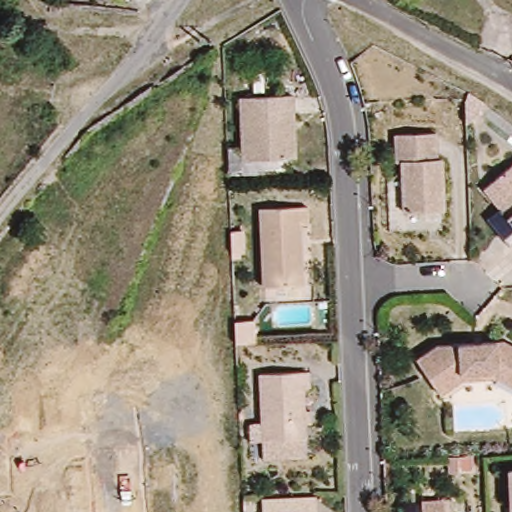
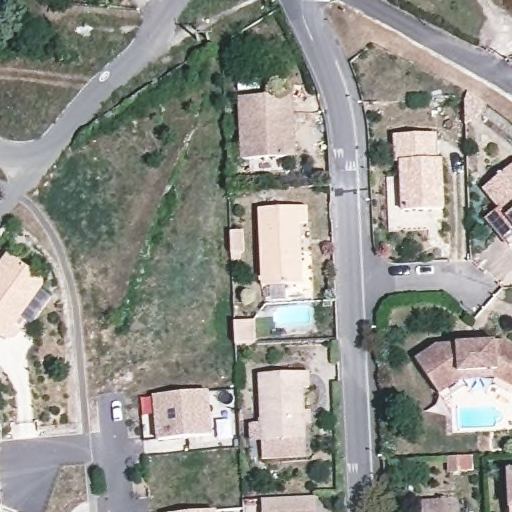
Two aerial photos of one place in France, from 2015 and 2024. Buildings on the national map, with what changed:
unchanged [(289,114),(290,135),(290,158),(237,160),(235,97),(287,95),(289,114)]
unchanged [(434,135),(435,159),(440,159),(442,211),(402,212),(400,177),(400,162),(395,162),(393,135),(434,135)]
unchanged [(491,217),(499,211),(482,190),(512,165),(512,242),(491,217)]
unchanged [(255,210),(303,208),(304,225),(296,225),(299,286),(258,288),(255,210)]
unchanged [(242,231),(242,253),(232,253),(231,231),(242,231)]
new [(15,329),(21,332),(13,344),(7,339),(5,341),(0,338),(0,264),(7,254),(47,284),(15,329)]
unchanged [(235,320),(254,319),(255,343),(237,344),(235,320)]
unchanged [(457,383),(435,398),(431,392),(411,363),(432,348),(497,343),(512,350),(512,391),(490,381),(457,383)]
unchanged [(307,424),(300,425),(302,441),(258,443),(257,424),(255,375),(304,372),(305,389),(299,389),(300,413),(306,412),(307,424)]
new [(215,436),(158,443),(153,397),(210,391),(215,436)]
unchanged [(504,512),(504,509),(502,473),(512,472),(512,512),(504,512)]
unchanged [(319,512),(259,512),(260,499),(318,496),(319,512)]
new [(198,512),(217,510),(217,512),(198,512)]

